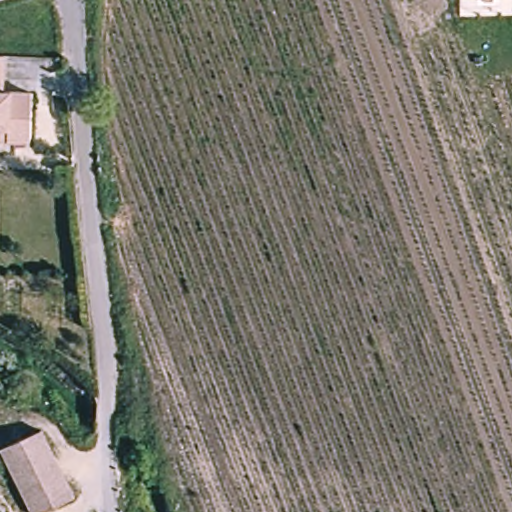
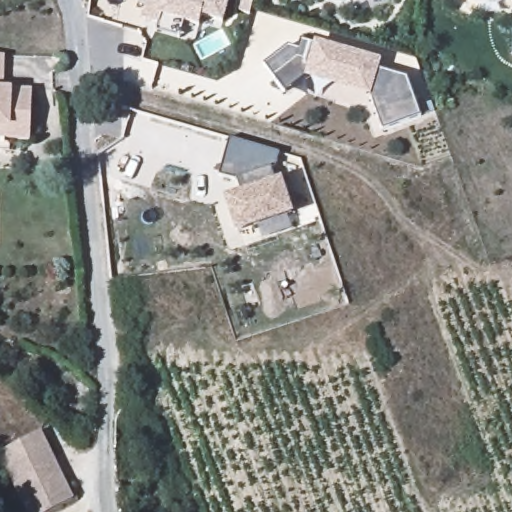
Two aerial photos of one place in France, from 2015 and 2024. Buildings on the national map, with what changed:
new [(223,25),(201,18),(199,28),(183,23),(179,40),(155,33),(158,24),(142,19),(147,0),(230,0),(229,1),(223,25)]
new [(314,46),(316,41),(381,61),(379,71),(406,79),(419,116),(383,130),(370,96),(304,78),(284,93),(263,66),(288,47),(297,51),(299,41),(314,46)]
unchanged [(30,93),(28,141),(6,140),(7,128),(0,127),(0,54),(5,54),(4,91),(30,93)]
new [(238,185),(220,179),(231,141),(282,156),(278,170),(274,172),(279,186),(283,185),(294,218),(240,236),(229,204),(244,199),(243,198),(239,184),(238,185)]
unchanged [(1,453),(15,445),(41,432),(62,472),(73,493),(40,512),(30,512),(1,453)]

